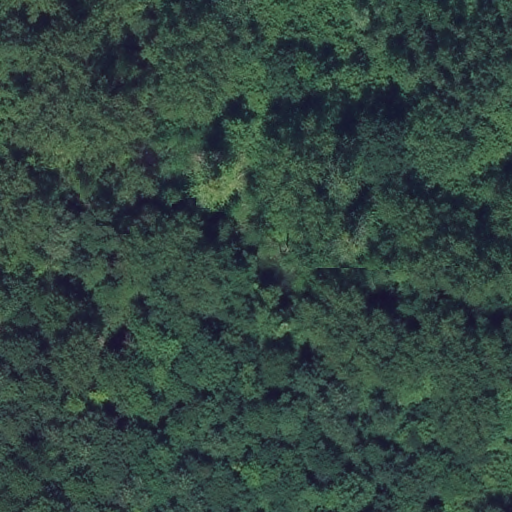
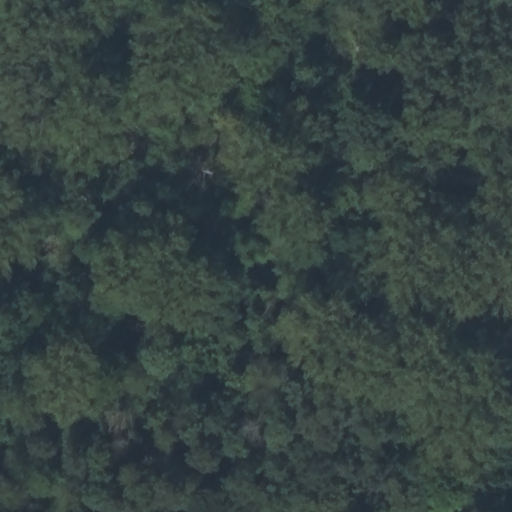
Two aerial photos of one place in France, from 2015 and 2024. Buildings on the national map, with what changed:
unchanged [(451,353),(479,360),(472,385),(444,380),(451,353)]

